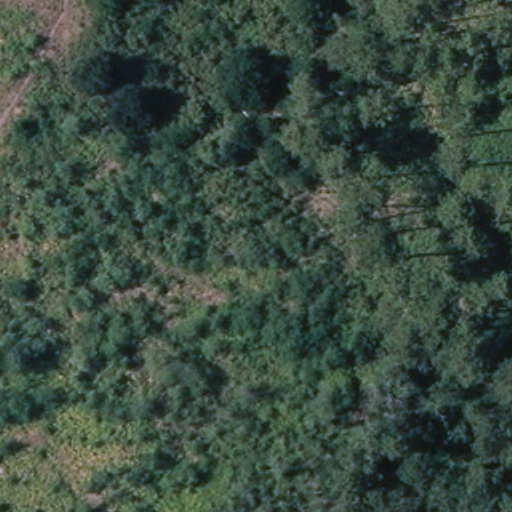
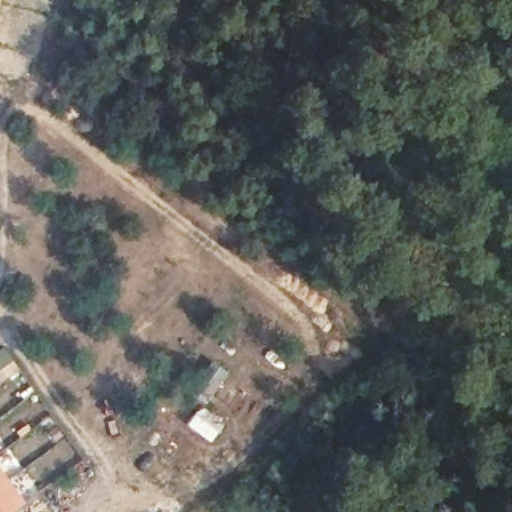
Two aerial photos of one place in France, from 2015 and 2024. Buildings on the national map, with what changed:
new [(26,510),(24,512),(0,512),(0,475),(26,510)]

